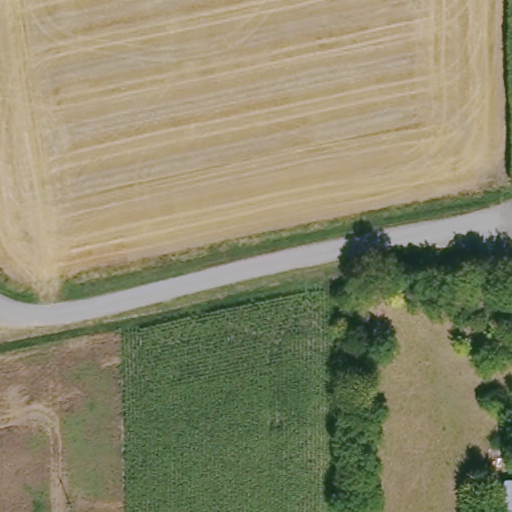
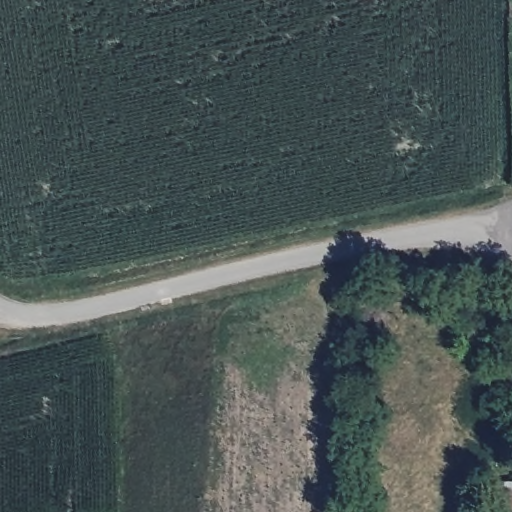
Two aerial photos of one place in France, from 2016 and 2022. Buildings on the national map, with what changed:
unchanged [(512,512),(489,512),(489,488),(512,488),(512,512)]

